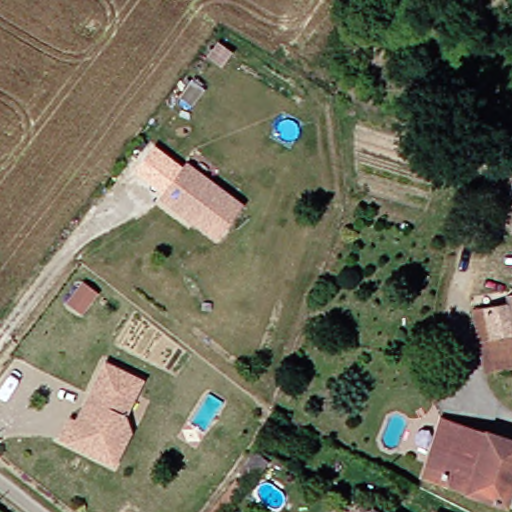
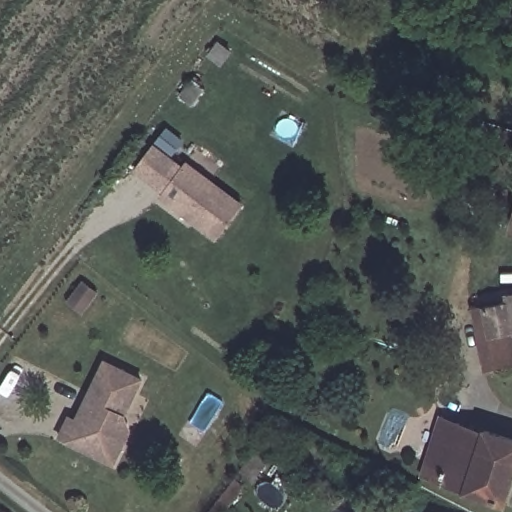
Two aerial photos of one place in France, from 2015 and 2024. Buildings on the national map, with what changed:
unchanged [(182,164),(237,206),(211,240),(156,197),(182,164)]
unchanged [(69,302),(84,282),(98,292),(83,312),(69,302)]
unchanged [(488,302),(512,297),(512,362),(502,364),(488,302)]
unchanged [(502,364),(481,370),(467,313),(470,306),(488,302),(502,364)]
unchanged [(92,452),(59,436),(70,416),(76,420),(107,361),(141,379),(121,414),(127,430),(117,448),(110,462),(92,452)]
unchanged [(420,461),(427,440),(437,443),(446,417),(493,432),(512,438),(512,494),(508,505),(427,478),(431,464),(420,461)]
unchanged [(377,502),(395,512),(369,512),(377,502)]
unchanged [(451,512),(437,512),(442,506),(451,512)]

